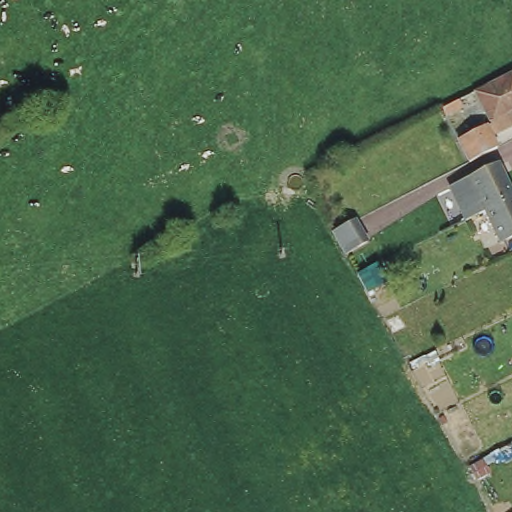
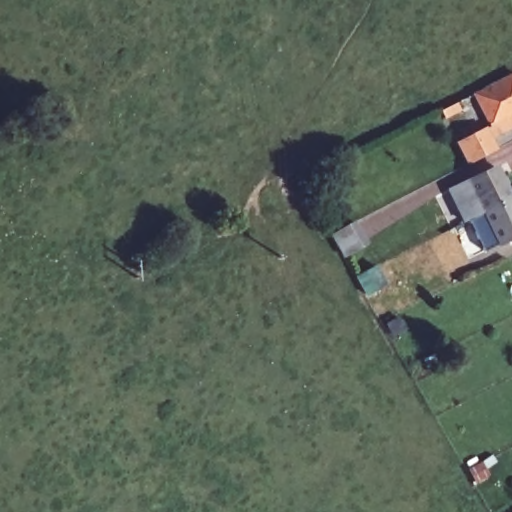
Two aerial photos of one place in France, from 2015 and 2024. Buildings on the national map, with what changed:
unchanged [(512,74),(512,128),(500,135),(485,103),(471,110),(465,97),(512,74)]
unchanged [(466,167),(460,154),(453,140),(477,129),(483,142),(489,155),(466,167)]
unchanged [(500,237),(487,210),(468,218),(452,186),(471,177),(500,164),(512,185),(512,238),(502,242),(500,237)]
unchanged [(354,219),(363,237),(341,249),(330,231),(354,219)]
unchanged [(377,260),(387,282),(366,292),(353,271),(377,260)]

